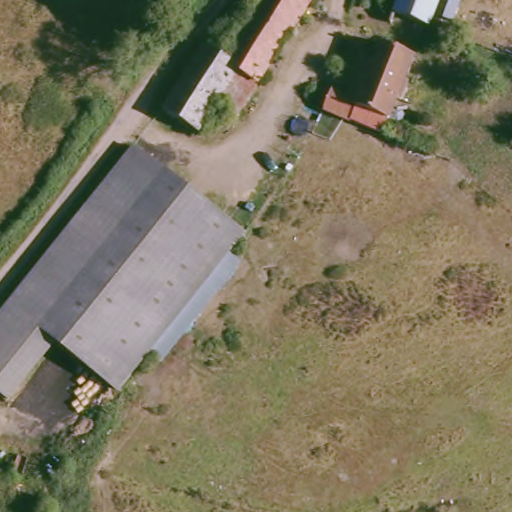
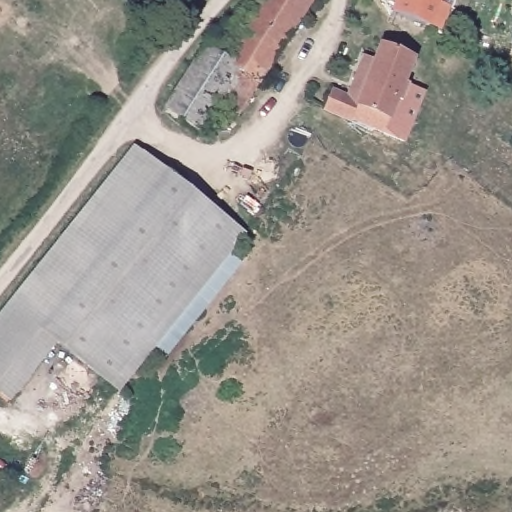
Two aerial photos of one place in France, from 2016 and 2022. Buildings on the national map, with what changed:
unchanged [(231,119),(211,106),(193,131),(158,112),(199,50),(219,61),(261,0),(308,0),(231,119)]
unchanged [(393,0),(436,0),(429,23),(427,28),(387,16),(389,12),(393,0)]
unchanged [(318,110),(324,90),(339,96),(354,58),(369,64),(378,45),(411,64),(384,135),(318,110)]
unchanged [(48,345),(1,308),(124,154),(128,149),(146,164),(239,234),(112,395),(48,345)]
unchanged [(0,402),(0,309),(1,308),(48,345),(0,402)]

